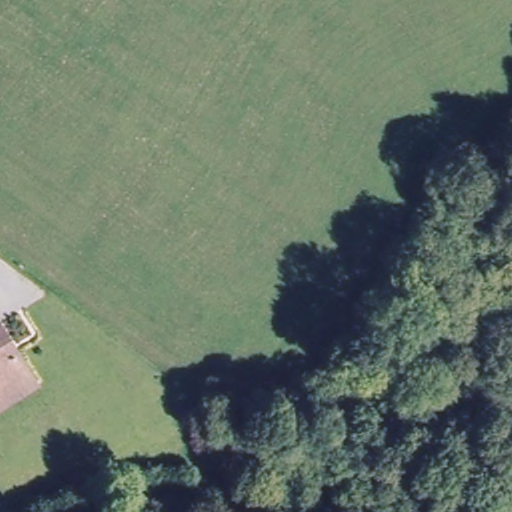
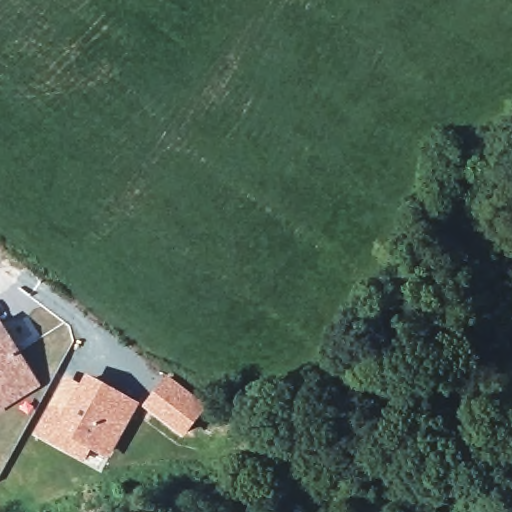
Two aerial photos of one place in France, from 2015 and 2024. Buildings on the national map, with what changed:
unchanged [(13,414),(5,401),(0,405),(0,316),(10,333),(13,331),(29,358),(42,378),(50,391),(13,414)]
new [(65,375),(79,382),(86,372),(142,403),(108,460),(92,450),(85,462),(32,433),(65,375)]
new [(167,374),(208,406),(184,437),(143,405),(167,374)]

